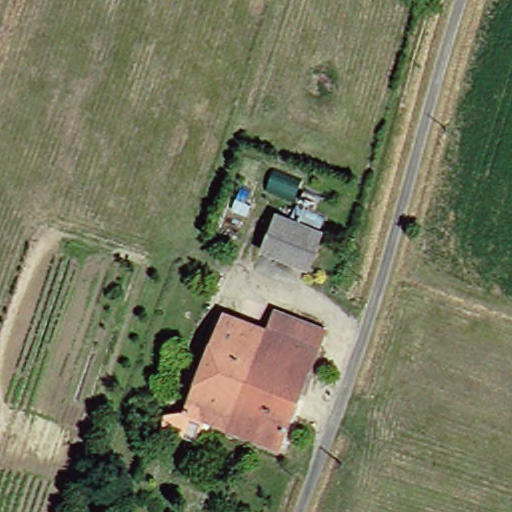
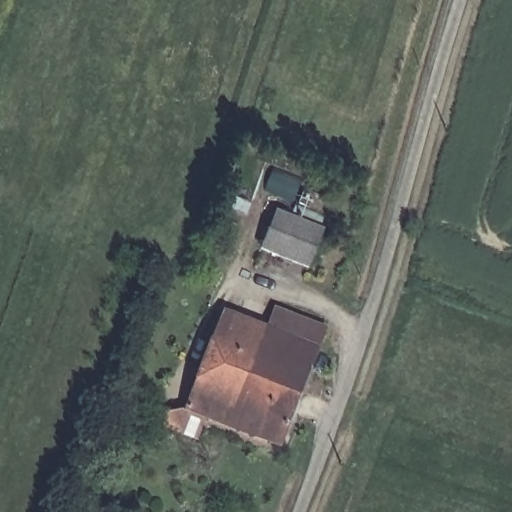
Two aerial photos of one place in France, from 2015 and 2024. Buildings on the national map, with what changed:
unchanged [(251,245),(267,206),(313,226),(297,264),(251,245)]
unchanged [(175,406),(214,306),(258,323),(266,304),(291,313),(283,333),(286,334),(273,367),(270,366),(248,357),(221,424),(175,406)]
unchanged [(316,323),(269,443),(221,424),(248,357),(270,366),(273,367),(286,334),(283,333),(291,313),(316,323)]

